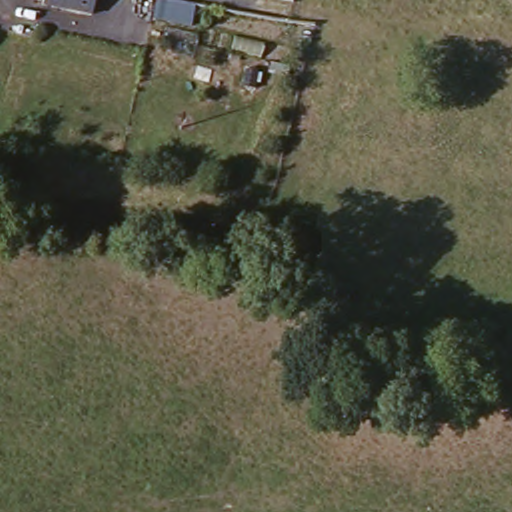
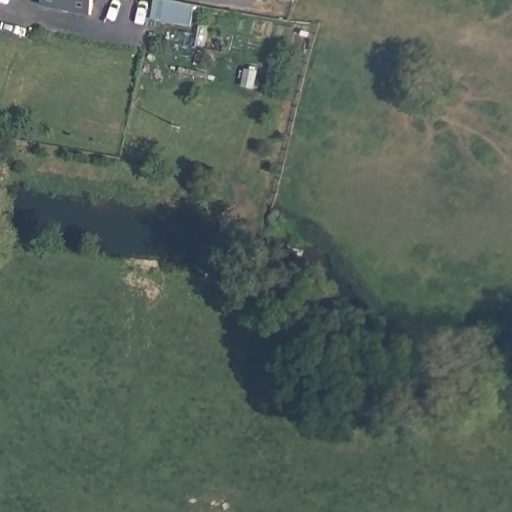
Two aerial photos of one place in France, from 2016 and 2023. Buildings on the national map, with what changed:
unchanged [(97,0),(93,18),(40,8),(42,0),(97,0)]
unchanged [(155,0),(166,0),(194,6),(191,29),(151,24),(155,0)]

